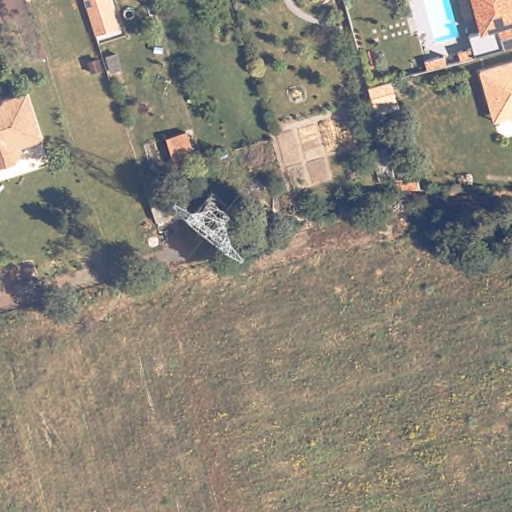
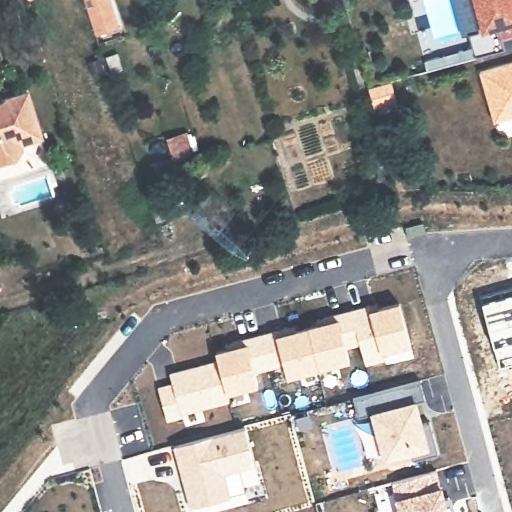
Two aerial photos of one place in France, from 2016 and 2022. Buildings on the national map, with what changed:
unchanged [(123,31),(99,38),(86,0),(112,0),(123,31)]
unchanged [(474,56),(469,33),(481,29),(472,0),(512,0),(512,46),(474,56)]
unchanged [(490,105),(481,71),(512,63),(512,117),(506,118),(495,121),(490,105)]
unchanged [(395,80),(401,101),(380,107),(379,107),(373,86),(395,80)]
unchanged [(22,142),(13,161),(0,165),(0,97),(23,89),(36,137),(22,142)]
new [(410,345),(381,353),(383,358),(365,364),(360,343),(346,347),(349,361),(287,378),(284,363),(254,372),(258,385),(227,393),(229,400),(184,413),(184,417),(168,421),(160,389),(173,385),(170,374),(218,362),(217,354),(235,349),(233,342),(290,327),(291,333),(327,325),(324,318),(370,306),(372,311),(400,305),(410,345)]
new [(415,382),(420,402),(411,404),(417,426),(425,424),(434,456),(408,463),(406,454),(380,461),(367,416),(353,420),(348,401),(415,382)]
new [(240,429),(251,468),(220,476),(227,501),(187,512),(182,492),(185,492),(183,484),(180,485),(170,449),(240,429)]
new [(431,473),(441,509),(446,507),(447,512),(395,512),(388,485),(431,473)]

